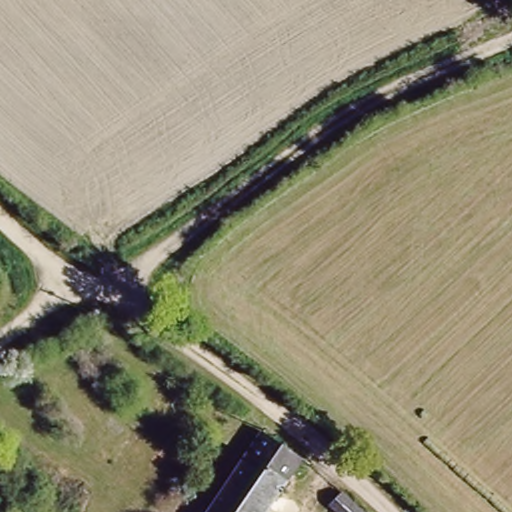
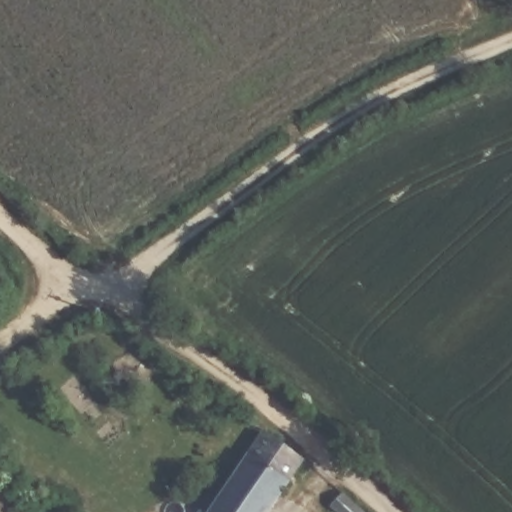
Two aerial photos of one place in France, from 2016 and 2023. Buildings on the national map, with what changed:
unchanged [(301,456),(263,512),(205,512),(258,433),(301,456)]
unchanged [(329,512),(326,508),(341,491),(363,512),(329,512)]

